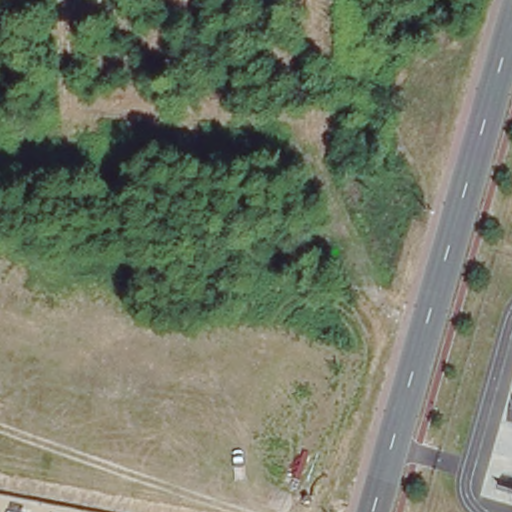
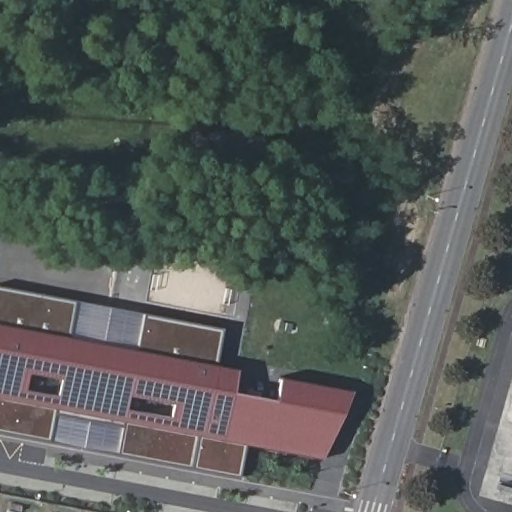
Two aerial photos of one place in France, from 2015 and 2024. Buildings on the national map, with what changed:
new [(248,447),(243,476),(0,430),(0,297),(1,288),(225,331),(219,363),(245,370),(241,395),(284,402),(288,377),(357,393),(328,463),(248,447)]

